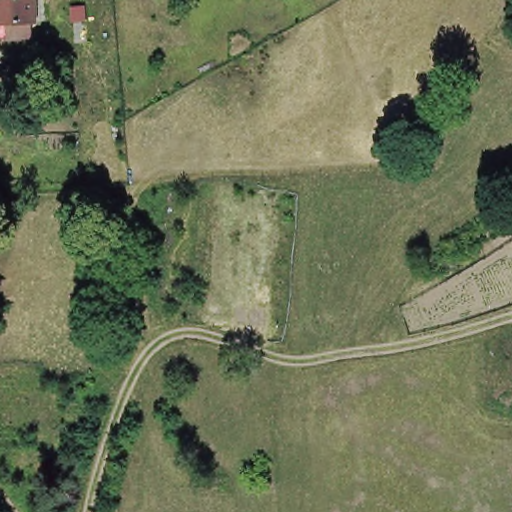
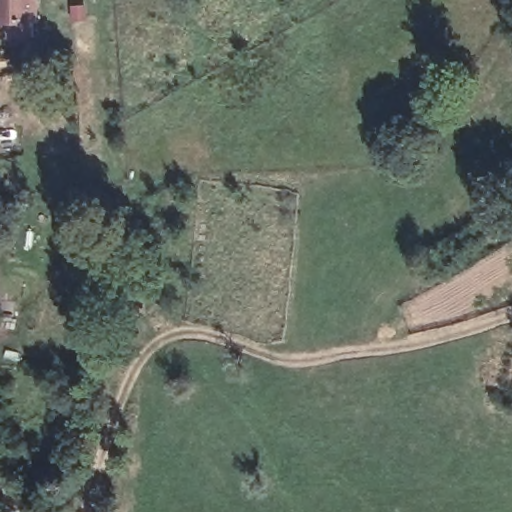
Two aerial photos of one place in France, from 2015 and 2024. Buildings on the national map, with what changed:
unchanged [(1,11),(1,0),(40,0),(41,10),(38,10),(38,27),(13,27),(4,27),(4,11),(1,11)]
unchanged [(56,84),(54,71),(74,69),(76,82),(56,84)]

